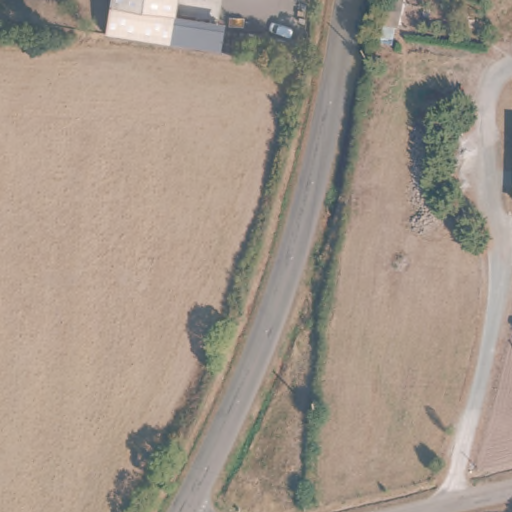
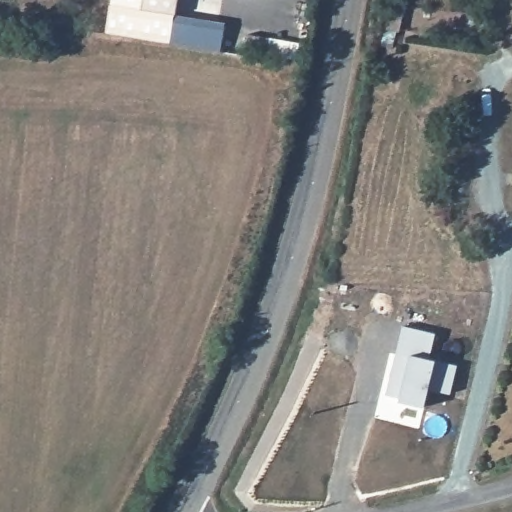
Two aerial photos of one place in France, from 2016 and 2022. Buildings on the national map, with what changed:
unchanged [(170,44),(106,34),(111,0),(176,0),(173,20),(170,44)]
unchanged [(224,28),(221,50),(170,44),(173,20),(224,28)]
new [(458,364),(450,392),(428,387),(423,407),(398,401),(399,399),(386,394),(402,325),(435,333),(428,358),(435,359),(458,364)]

